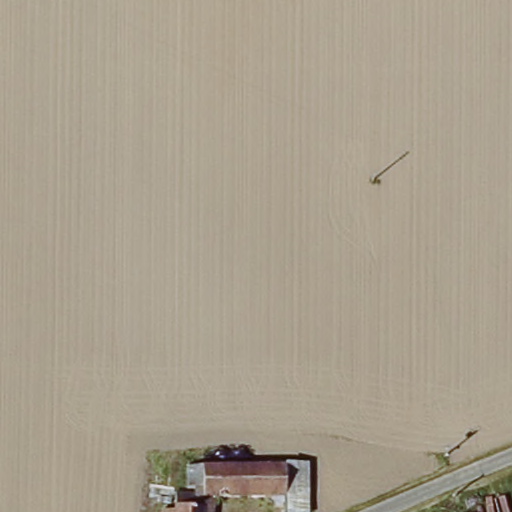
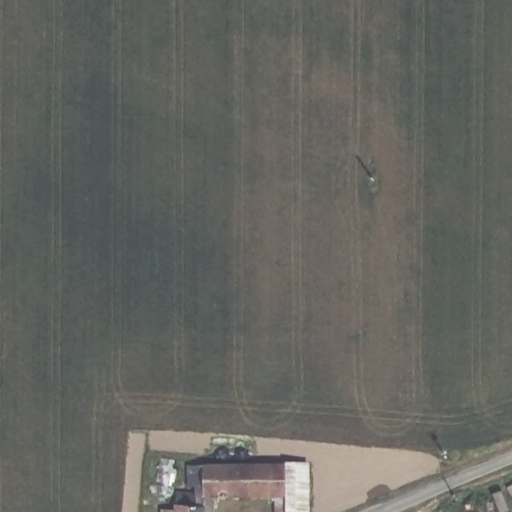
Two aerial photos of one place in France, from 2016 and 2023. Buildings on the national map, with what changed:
unchanged [(177,508),(182,487),(188,488),(193,461),(292,465),(308,465),(307,512),(277,512),(278,495),(210,490),(209,512),(166,512),(167,506),(177,508)]

